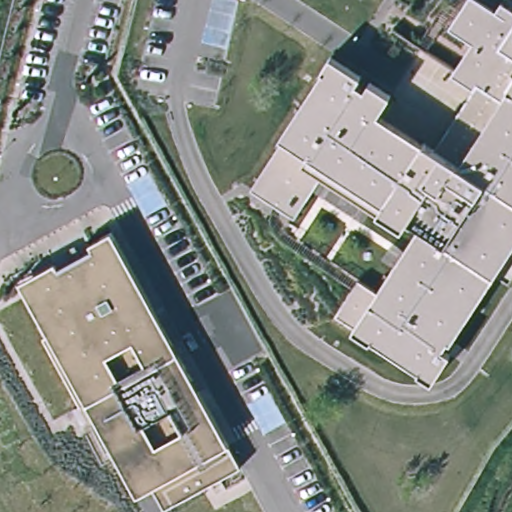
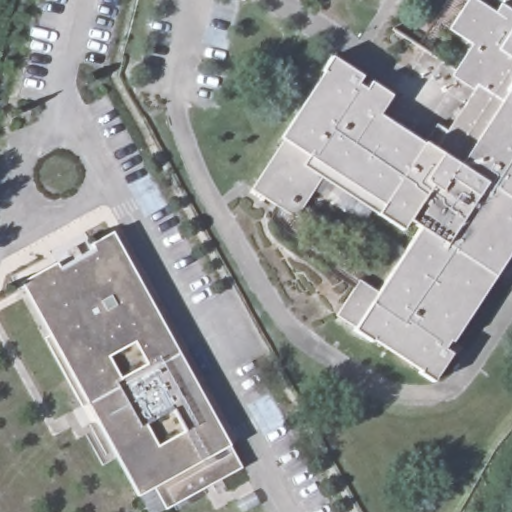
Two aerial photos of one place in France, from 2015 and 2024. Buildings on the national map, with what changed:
unchanged [(452,340),(447,348),(455,353),(436,382),(420,372),(421,371),(375,339),(374,341),(355,329),(360,321),(342,310),(367,273),(385,284),(421,228),(411,221),(405,230),(380,213),(385,204),(331,169),(303,214),(257,184),(286,139),(282,136),(326,70),(324,69),(334,54),(365,74),(361,82),(369,86),(373,79),(395,93),(382,111),(427,141),(426,142),(488,182),(493,173),(466,157),(476,139),(453,126),(460,114),(445,105),(442,111),(401,86),(431,41),(463,61),(479,37),(456,23),(471,0),(495,0),(503,5),(507,0),(512,0),(512,255),(455,341),(452,340)]
unchanged [(58,269),(92,250),(89,245),(112,232),(229,446),(231,445),(244,467),(166,509),(155,489),(138,499),(84,405),(56,420),(0,314),(0,306),(23,293),(18,283),(55,263),(58,269)]

